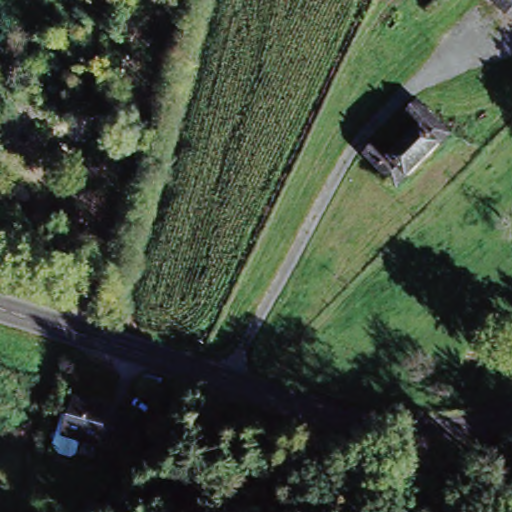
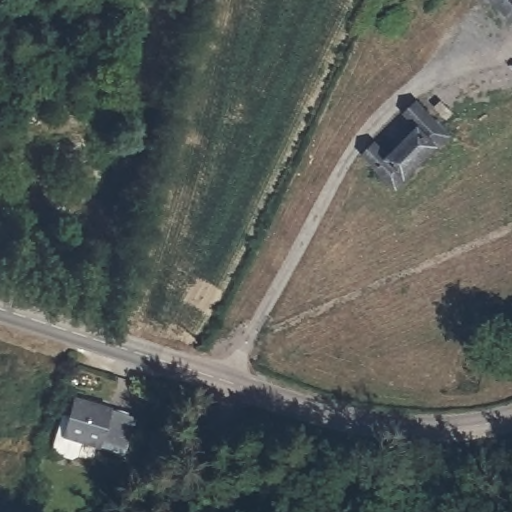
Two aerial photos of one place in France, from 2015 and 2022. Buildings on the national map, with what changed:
unchanged [(489,0),(512,0),(512,21),(489,0)]
unchanged [(397,187),(364,155),(376,143),(390,158),(421,128),(407,112),(417,102),(450,135),(397,187)]
unchanged [(69,455),(52,450),(49,445),(60,411),(68,413),(74,396),(133,415),(121,451),(79,438),(74,453),(69,455)]

